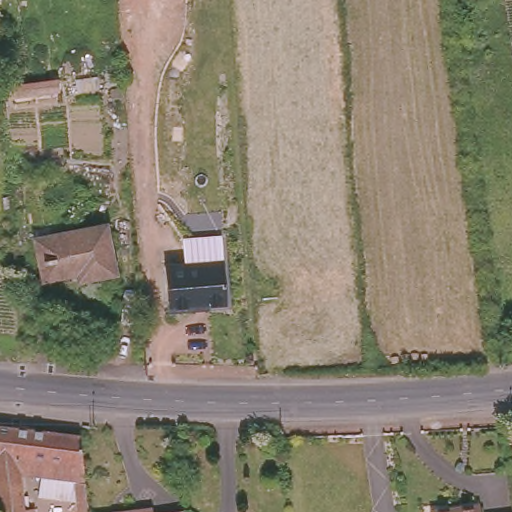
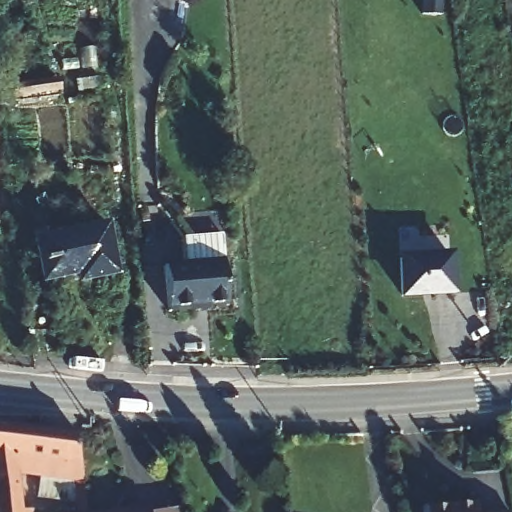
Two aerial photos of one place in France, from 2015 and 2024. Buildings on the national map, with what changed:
unchanged [(37,239),(108,221),(118,269),(80,278),(79,268),(43,276),(37,239)]
unchanged [(183,238),(221,235),(223,260),(226,302),(194,305),(194,309),(168,311),(164,265),(185,263),(183,238)]
new [(456,295),(399,298),(398,257),(453,252),(456,295)]
unchanged [(22,502),(31,501),(32,512),(0,512),(0,420),(6,421),(4,448),(33,452),(31,470),(15,468),(22,502)]
unchanged [(31,470),(33,452),(4,448),(6,421),(73,429),(84,512),(72,512),(70,500),(33,495),(35,470),(31,470)]
unchanged [(148,512),(103,512),(148,506),(148,512)]
unchanged [(182,512),(158,512),(182,510),(182,512)]

